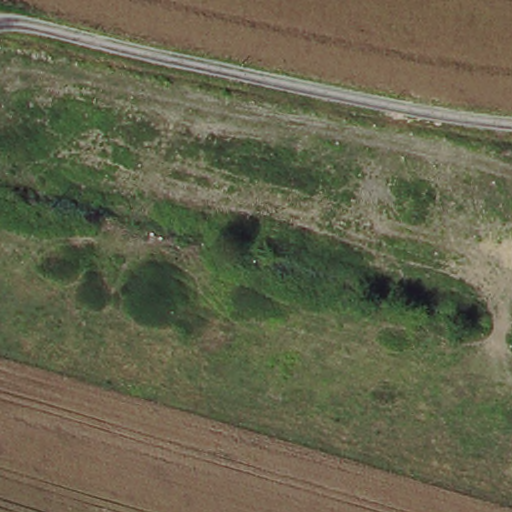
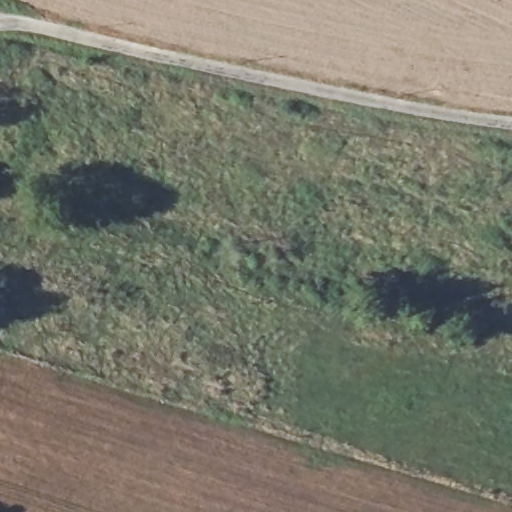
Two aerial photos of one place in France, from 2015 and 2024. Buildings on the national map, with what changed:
[]

